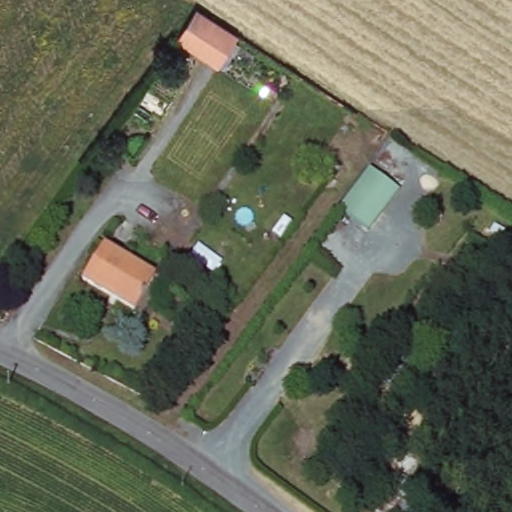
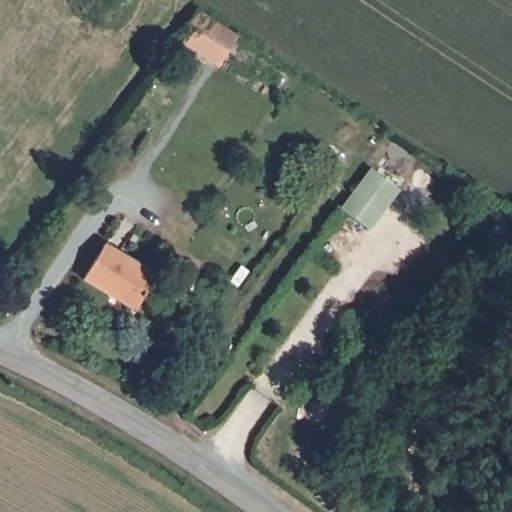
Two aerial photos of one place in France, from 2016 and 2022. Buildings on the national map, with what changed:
unchanged [(235,35),(216,64),(176,39),(196,10),(235,35)]
unchanged [(401,193),(368,237),(339,216),(371,172),(401,193)]
unchanged [(154,273),(135,309),(82,280),(101,245),(154,273)]

